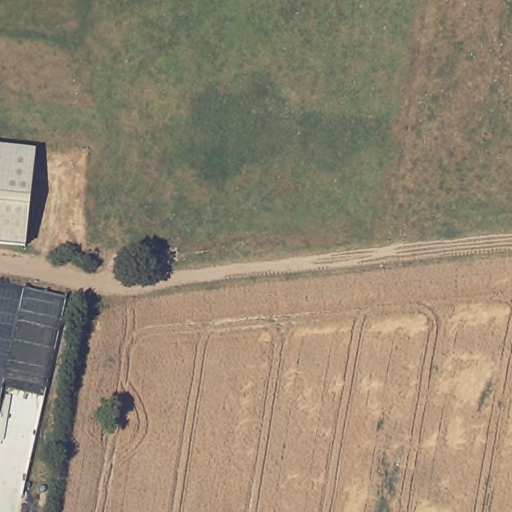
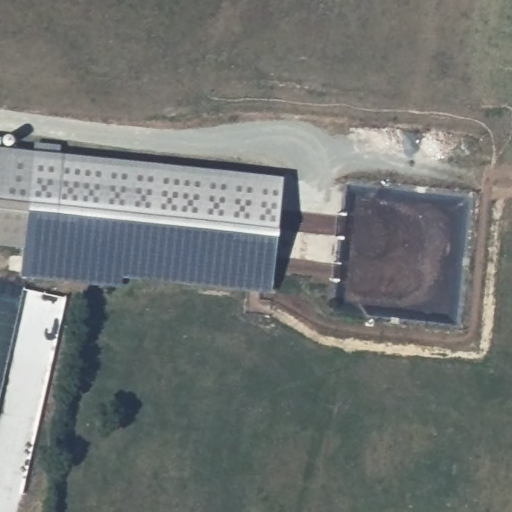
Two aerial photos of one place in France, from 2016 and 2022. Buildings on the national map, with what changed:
new [(122,276),(121,286),(21,275),(25,250),(35,152),(35,141),(60,144),(60,152),(283,175),(271,292),(122,276)]
unchanged [(25,250),(0,247),(0,148),(35,152),(25,250)]

